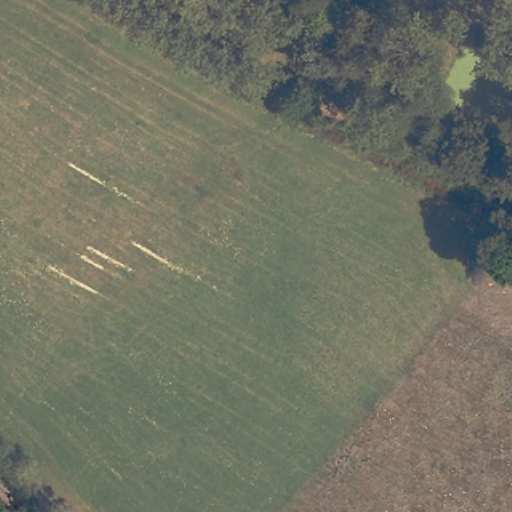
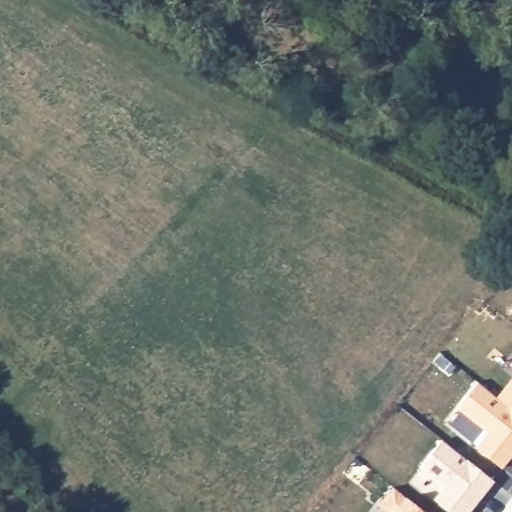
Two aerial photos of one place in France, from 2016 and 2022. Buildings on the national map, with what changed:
new [(455,408),(475,382),(496,397),(512,377),(512,457),(501,470),(473,448),(486,433),(455,408)]
new [(418,468),(441,440),(495,482),(471,512),(445,512),(431,501),(442,488),(418,468)]
new [(391,487),(403,499),(405,497),(424,512),(382,512),(376,505),(391,487)]

